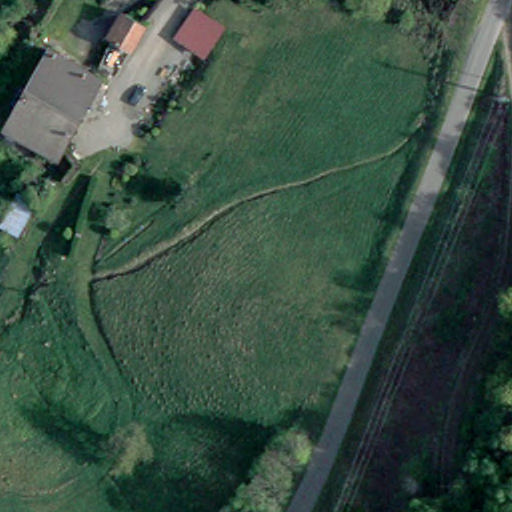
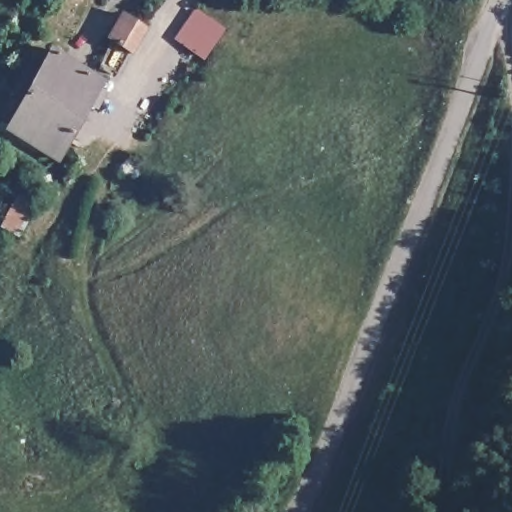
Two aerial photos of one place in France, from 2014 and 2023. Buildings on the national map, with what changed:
unchanged [(195,10),(224,28),(206,56),(177,38),(195,10)]
unchanged [(146,29),(130,56),(110,44),(127,18),(146,29)]
unchanged [(52,57),(105,87),(99,97),(107,101),(99,114),(92,110),(60,165),(6,134),(52,57)]
unchanged [(20,239),(2,231),(18,199),(36,208),(20,239)]

